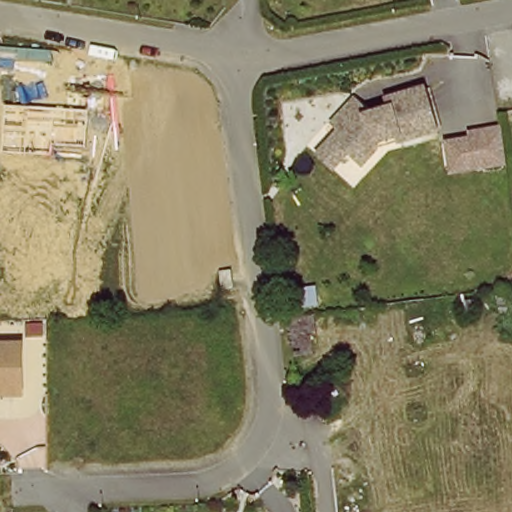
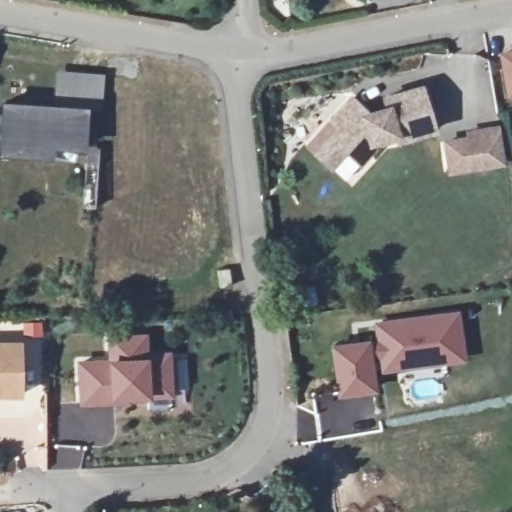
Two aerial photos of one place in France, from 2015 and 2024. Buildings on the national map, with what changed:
new [(512,51),(512,98),(509,98),(500,53),(512,51)]
unchanged [(316,154),(331,137),(338,130),(330,122),(351,100),(359,108),(367,115),(387,109),(384,100),(421,89),(433,131),(396,142),(395,136),(371,143),(372,149),(359,164),(346,152),(331,168),(316,154)]
new [(4,110),(88,116),(85,153),(52,151),(52,161),(1,158),(4,110)]
unchanged [(448,175),(444,141),(469,137),(468,131),(503,126),(508,166),(448,175)]
unchanged [(230,278),(232,296),(221,297),(219,279),(230,278)]
new [(371,340),(377,339),(374,322),(460,311),(466,362),(375,373),(376,391),(337,396),(333,345),(371,340)]
new [(109,361),(107,335),(148,333),(150,353),(171,351),(174,393),(153,392),(153,397),(112,398),(81,401),(80,363),(109,361)]
unchanged [(0,393),(0,343),(21,343),(21,393),(0,393)]

